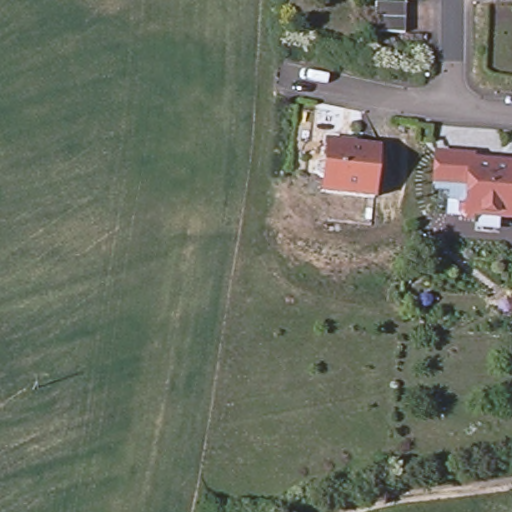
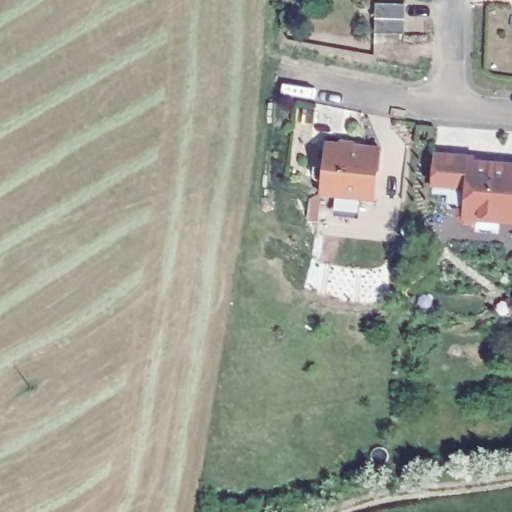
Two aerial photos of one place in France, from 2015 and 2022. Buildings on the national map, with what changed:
unchanged [(321,167),(323,145),(375,152),(369,203),(317,197),(319,185),(309,179),(310,170),(321,167)]
unchanged [(481,212),(468,211),(468,198),(451,197),(453,181),(438,181),(439,149),(471,150),(471,158),(512,160),(512,213),(499,213),(499,221),(479,221),(481,212)]

